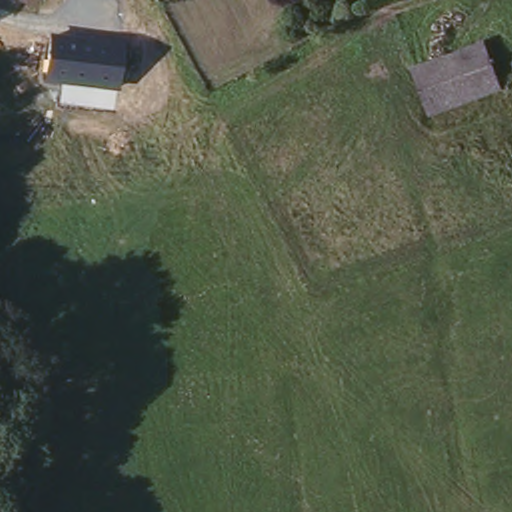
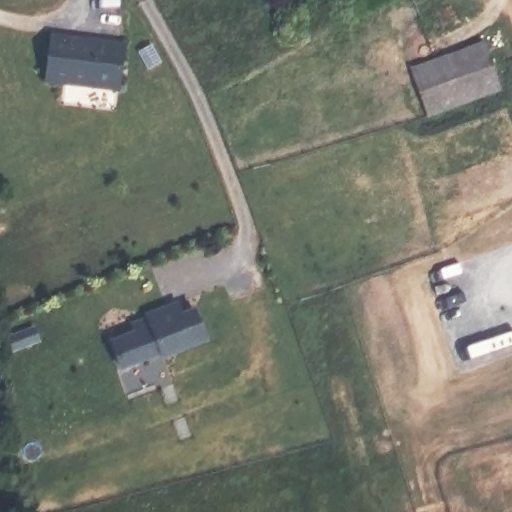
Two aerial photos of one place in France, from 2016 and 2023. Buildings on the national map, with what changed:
unchanged [(126,41),(121,90),(48,82),(52,34),(126,41)]
unchanged [(486,36),(508,93),(430,125),(408,67),(486,36)]
new [(106,341),(133,331),(128,322),(170,306),(176,320),(192,312),(200,340),(157,355),(157,351),(114,367),(106,341)]

